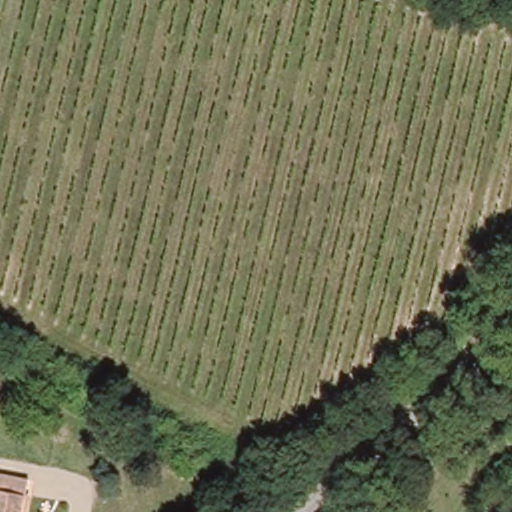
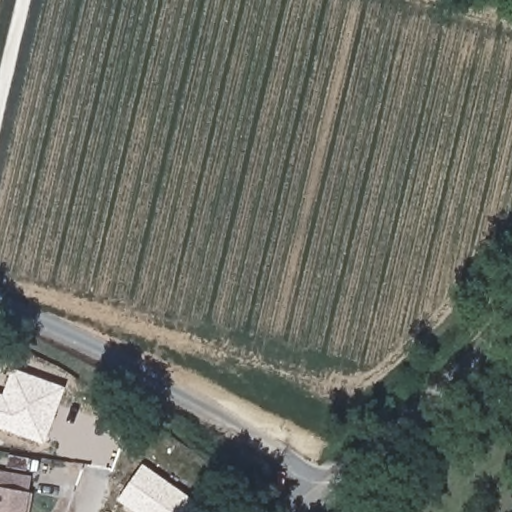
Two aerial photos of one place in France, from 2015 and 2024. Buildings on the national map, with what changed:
new [(0,429),(0,394),(3,395),(12,367),(65,387),(44,445),(0,429)]
new [(179,512),(134,512),(117,500),(143,463),(189,496),(179,512)]
unchanged [(26,493),(23,512),(0,512),(0,468),(29,473),(26,493)]

